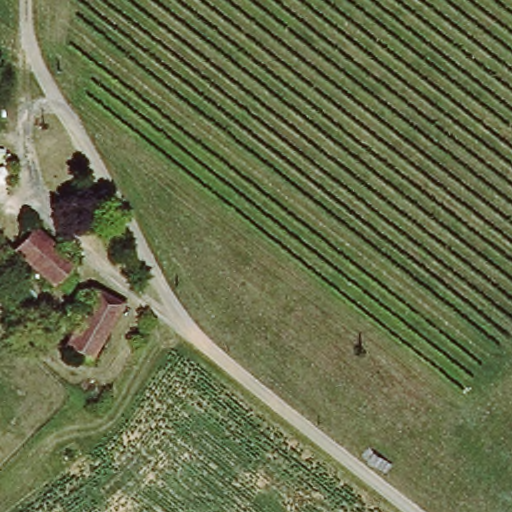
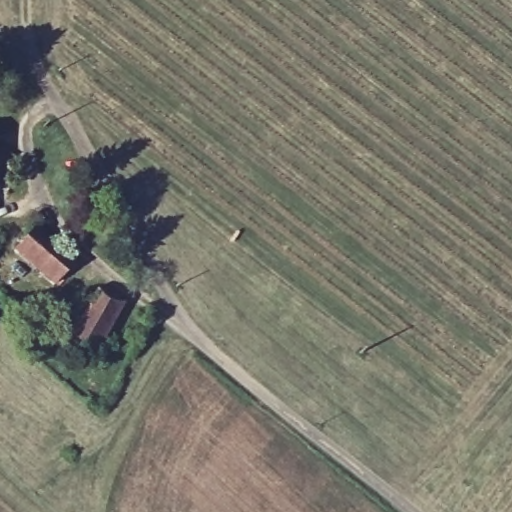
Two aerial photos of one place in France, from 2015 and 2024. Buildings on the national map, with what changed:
unchanged [(69,292),(55,283),(11,256),(27,230),(71,257),(85,266),(69,292)]
unchanged [(128,308),(91,367),(67,352),(104,292),(128,308)]

